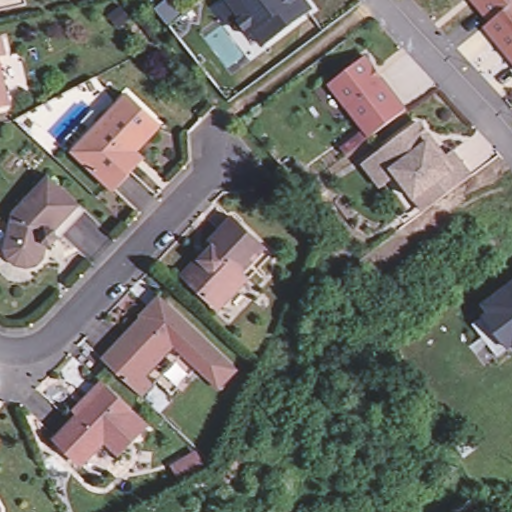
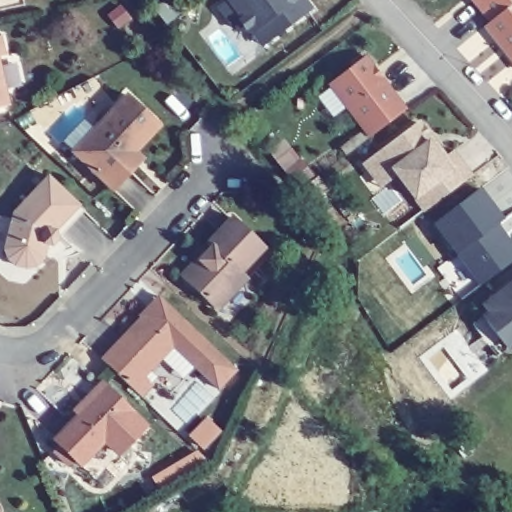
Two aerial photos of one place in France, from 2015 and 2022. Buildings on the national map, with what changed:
unchanged [(310,0),(315,7),(267,42),(270,46),(254,59),(214,4),(219,0),(310,0)]
unchanged [(480,8),(484,5),(479,0),(512,0),(512,3),(490,21),(480,8)]
unchanged [(375,73),(373,74),(378,81),(379,79),(405,114),(369,139),(330,85),(365,59),(375,73)]
unchanged [(0,102),(0,92),(2,101),(0,102)]
unchanged [(156,123),(120,160),(128,169),(110,189),(71,150),(61,139),(91,107),(101,118),(126,94),(156,123)]
unchanged [(457,169),(468,160),(476,174),(425,210),(399,176),(379,189),(360,166),(422,120),(457,169)]
unchanged [(82,207),(49,242),(44,240),(41,255),(34,262),(24,264),(13,261),(5,255),(2,245),(11,209),(46,172),(82,207)]
new [(434,224),(482,189),(504,221),(500,224),(512,244),(512,263),(480,285),(457,255),(434,224)]
unchanged [(196,262),(192,258),(205,244),(200,240),(225,213),(256,242),(233,266),(240,272),(209,304),(180,277),(196,262)]
unchanged [(478,322),(494,309),(488,302),(512,282),(512,346),(503,353),(478,322)]
unchanged [(133,312),(142,304),(154,293),(163,302),(228,368),(212,385),(168,343),(138,372),(146,379),(135,391),(99,356),(137,317),(133,312)]
unchanged [(109,387),(148,424),(121,451),(107,437),(87,459),(61,437),(109,387)]
unchanged [(6,507),(6,512),(0,512),(0,497),(6,507)]

